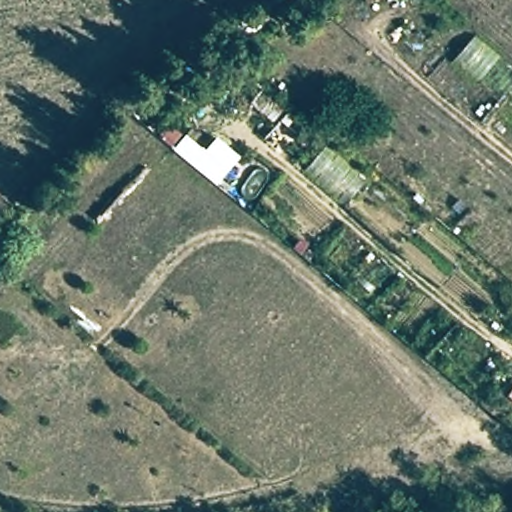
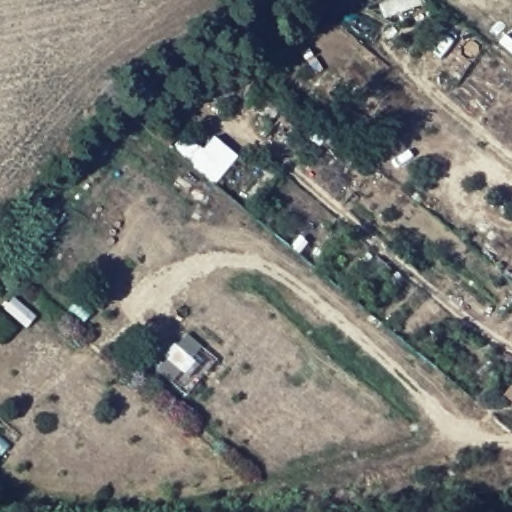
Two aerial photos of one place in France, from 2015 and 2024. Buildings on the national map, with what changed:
unchanged [(512,388),(512,403),(512,404),(503,400),(511,388),(512,388)]

